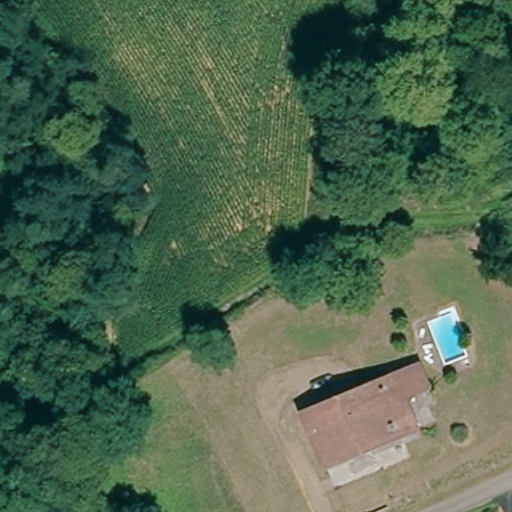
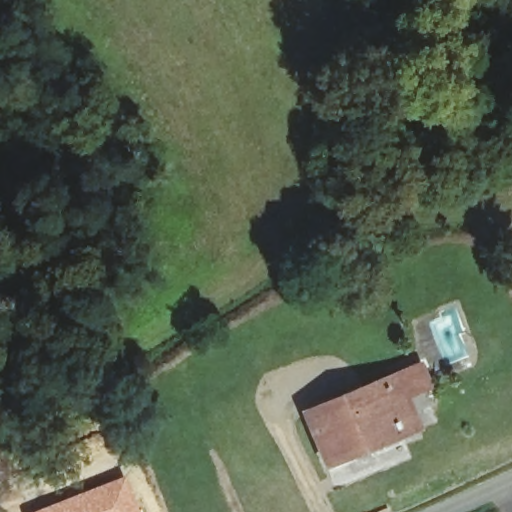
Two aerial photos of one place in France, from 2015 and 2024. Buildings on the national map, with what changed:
unchanged [(370,392),(368,388),(397,376),(422,365),(431,385),(406,396),(420,429),(400,438),(379,388),(370,392)]
unchanged [(329,468),(325,460),(307,416),(368,388),(370,392),(379,388),(400,438),(329,468)]
new [(125,475),(141,512),(31,512),(125,475)]

